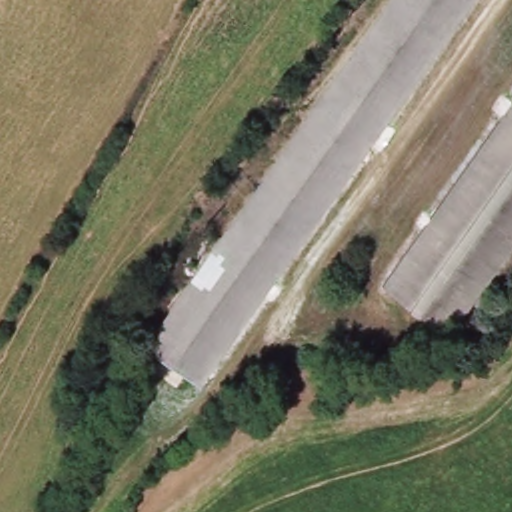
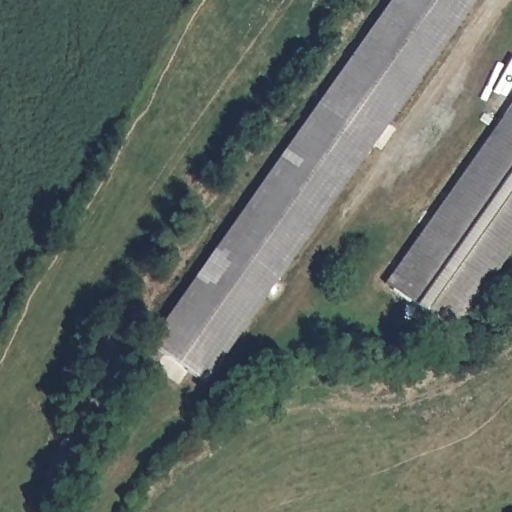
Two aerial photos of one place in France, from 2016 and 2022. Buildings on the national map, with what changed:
unchanged [(190,385),(139,348),(368,27),(387,0),(466,0),(328,194),(195,377),(190,385)]
unchanged [(444,320),(389,282),(385,279),(512,100),(512,239),(451,325),(444,320)]

